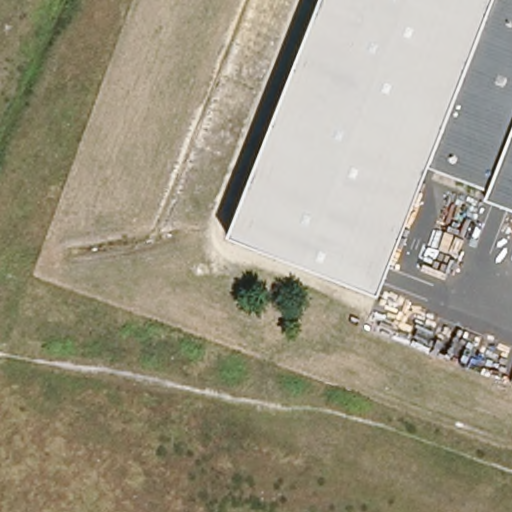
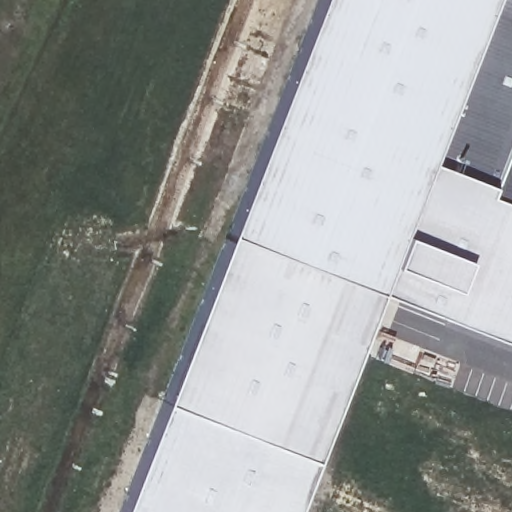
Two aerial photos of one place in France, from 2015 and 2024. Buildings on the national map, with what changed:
unchanged [(378,291),(231,235),(322,0),(492,0),(432,169),(378,291)]
unchanged [(378,291),(432,169),(492,0),(512,0),(512,344),(378,291)]
new [(231,235),(378,291),(312,461),(162,402),(231,235)]
new [(292,512),(119,512),(162,402),(312,461),(292,512)]

